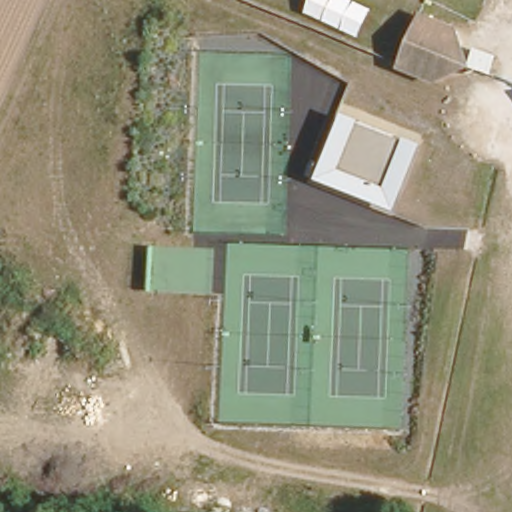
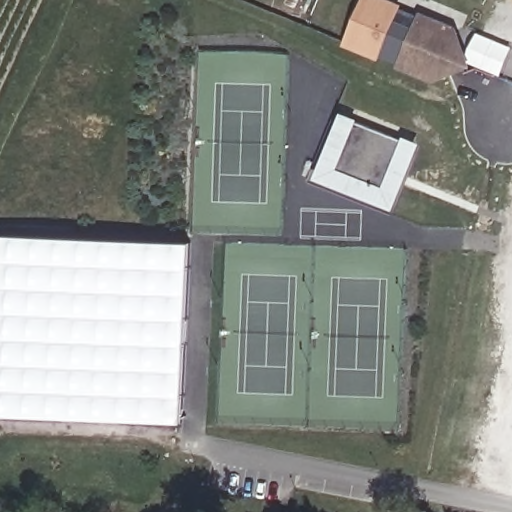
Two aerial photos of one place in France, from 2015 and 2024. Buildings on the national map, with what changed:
new [(382,56),(380,59),(344,44),(363,0),(393,0),(404,4),(397,17),(410,23),(394,61),(382,56)]
unchanged [(444,72),(427,79),(393,64),(413,16),(444,29),(454,46),(462,63),(444,72)]
unchanged [(395,210),(318,178),(344,113),(421,143),(395,210)]
new [(0,416),(0,314),(3,234),(192,242),(184,422),(0,416)]

